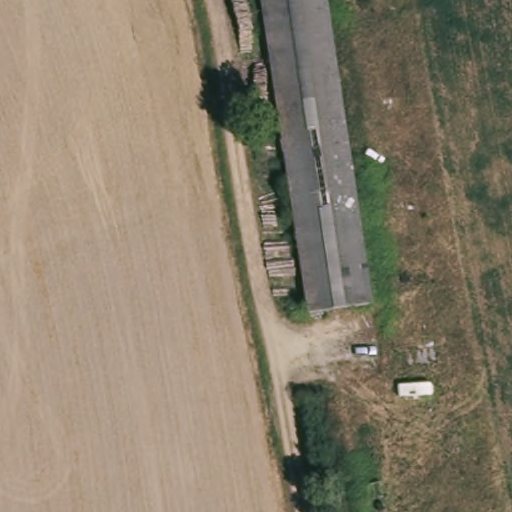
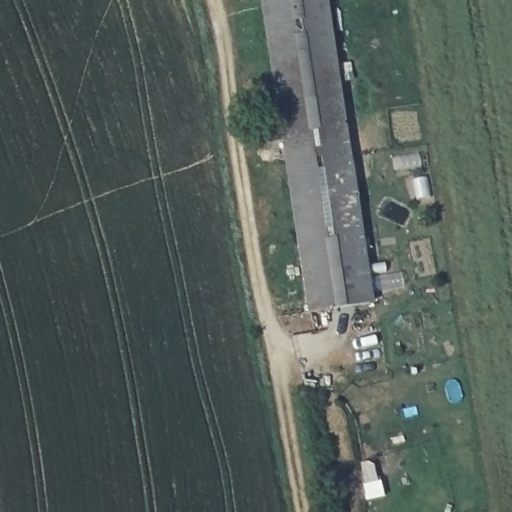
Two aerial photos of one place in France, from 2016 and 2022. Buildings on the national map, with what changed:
unchanged [(243,0),(249,0),(243,1),(243,0)]
unchanged [(304,243),(258,0),(328,0),(371,227),(304,243)]
unchanged [(386,303),(318,316),(304,243),(371,227),(386,303)]

